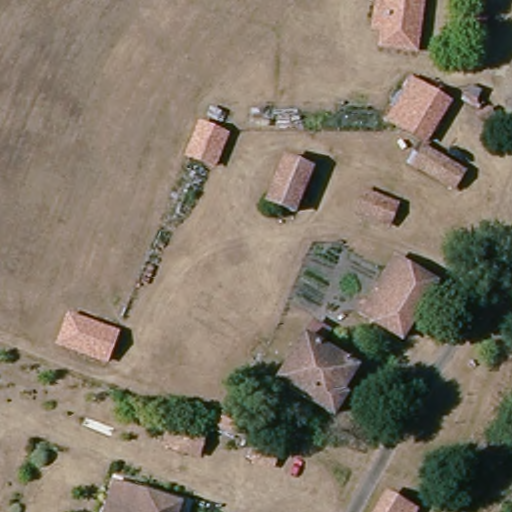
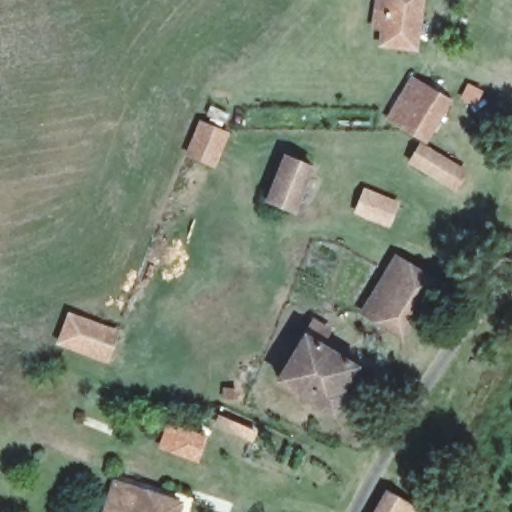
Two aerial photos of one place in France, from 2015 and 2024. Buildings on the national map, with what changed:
unchanged [(414,47),(379,42),(386,0),(421,0),(414,47)]
unchanged [(445,103),(423,137),(402,124),(423,91),(445,103)]
unchanged [(217,171),(182,155),(197,121),(230,133),(217,171)]
unchanged [(460,171),(449,188),(410,160),(419,145),(460,171)]
unchanged [(296,212),(267,200),(285,158),(315,169),(296,212)]
unchanged [(350,214),(361,187),(401,203),(388,230),(350,214)]
unchanged [(432,283),(401,338),(362,318),(394,261),(432,283)]
unchanged [(115,331),(105,358),(61,343),(70,315),(115,331)]
unchanged [(339,361),(296,338),(307,316),(351,338),(339,361)]
unchanged [(339,361),(357,371),(344,396),(339,394),(328,413),(272,384),(296,338),(339,361)]
unchanged [(187,424),(180,446),(147,433),(155,413),(187,424)]
unchanged [(165,512),(111,512),(121,486),(169,503),(165,512)]
unchanged [(409,512),(377,512),(387,492),(413,505),(409,512)]

